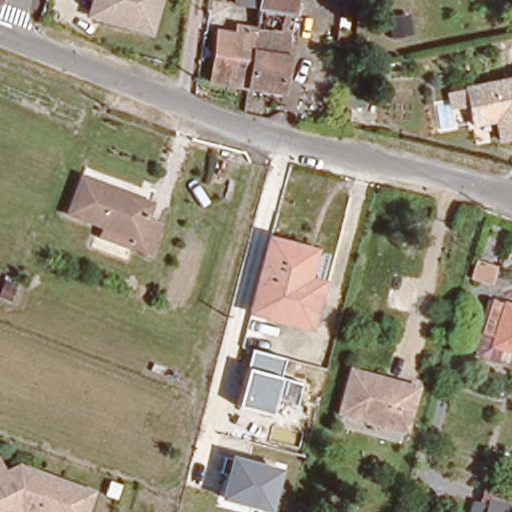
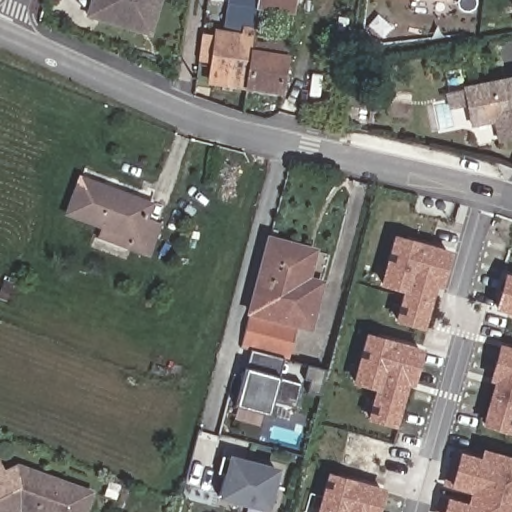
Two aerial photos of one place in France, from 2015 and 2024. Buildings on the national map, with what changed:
unchanged [(150,34),(141,31),(95,17),(89,15),(94,0),(161,0),(150,34)]
unchanged [(255,11),(235,9),(236,0),(256,0),(255,11)]
unchanged [(256,32),(261,0),(295,0),(281,97),(247,92),(256,32)]
unchanged [(217,37),(234,39),(235,30),(247,32),(256,32),(247,92),(210,86),(217,37)]
unchanged [(347,32),(345,47),(336,46),(338,31),(347,32)]
unchanged [(499,140),(495,120),(471,125),(464,88),(512,78),(512,137),(499,140)]
unchanged [(94,240),(96,230),(64,218),(76,184),(145,210),(140,225),(155,231),(144,259),(94,240)]
new [(456,250),(448,284),(441,282),(429,329),(397,320),(405,291),(383,286),(398,235),(456,250)]
unchanged [(246,316),(265,244),(302,254),(310,256),(303,283),(316,287),(313,297),(305,331),(246,316)]
new [(512,272),(512,309),(501,307),(510,272),(512,272)]
unchanged [(10,303),(0,300),(0,295),(5,282),(16,286),(10,303)]
demolished [(499,351),(502,340),(486,336),(495,306),(512,310),(512,355),(499,351)]
new [(430,348),(423,376),(417,375),(402,428),(371,420),(378,390),(355,384),(370,332),(430,348)]
new [(498,381),(493,379),(505,342),(512,344),(512,431),(486,422),(498,381)]
unchanged [(273,398),(268,415),(236,406),(246,368),(252,350),(285,359),(280,377),(302,383),(295,407),(273,398)]
demolished [(416,395),(405,434),(340,416),(351,377),(416,395)]
new [(472,503),(476,491),(456,486),(464,450),(487,453),(488,447),(512,453),(512,512),(448,512),(451,497),(472,503)]
unchanged [(227,458),(230,455),(280,469),(270,512),(217,498),(223,475),(219,473),(223,457),(227,458)]
unchanged [(10,468),(25,473),(26,469),(85,490),(77,512),(0,512),(0,473),(10,468)]
new [(383,512),(321,512),(332,471),(390,486),(383,512)]
demolished [(480,505),(484,490),(512,498),(512,512),(470,512),(472,503),(480,505)]

